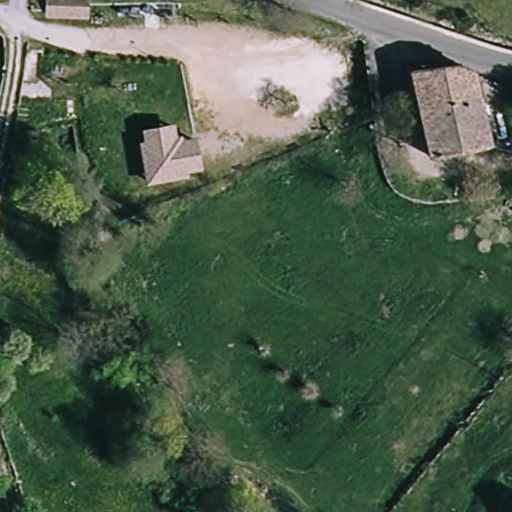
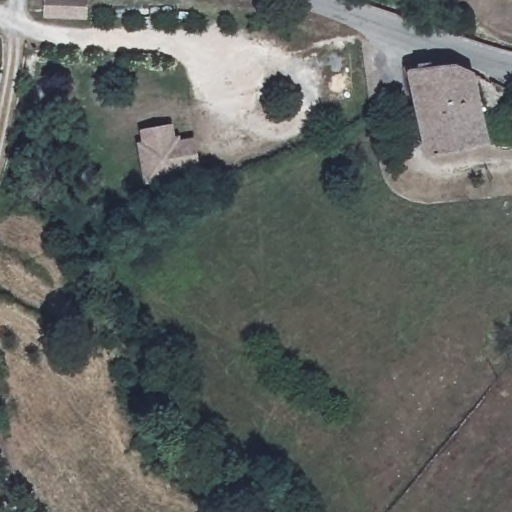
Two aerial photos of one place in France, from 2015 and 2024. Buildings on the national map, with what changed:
unchanged [(47,17),(47,0),(87,0),(87,17),(47,17)]
unchanged [(472,72),(487,141),(428,154),(409,68),(457,61),(472,72)]
unchanged [(137,129),(165,126),(166,142),(186,139),(192,165),(177,168),(177,173),(140,179),(134,143),(139,143),(137,129)]

